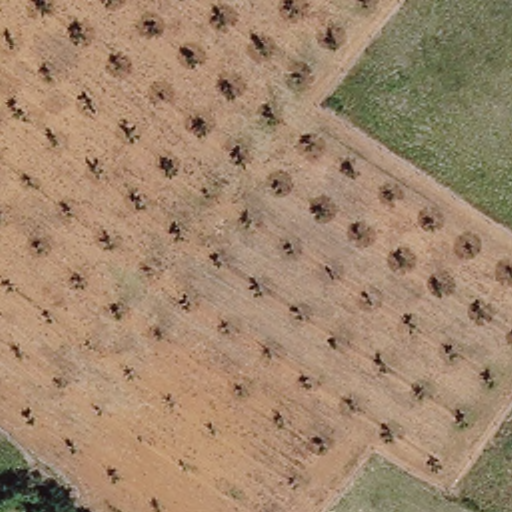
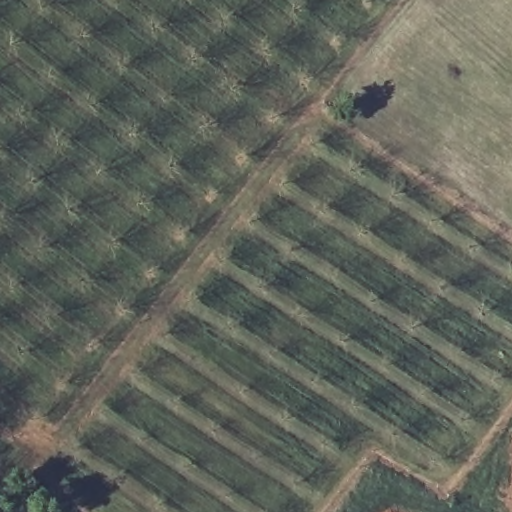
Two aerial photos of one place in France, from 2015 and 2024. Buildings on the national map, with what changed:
[]

